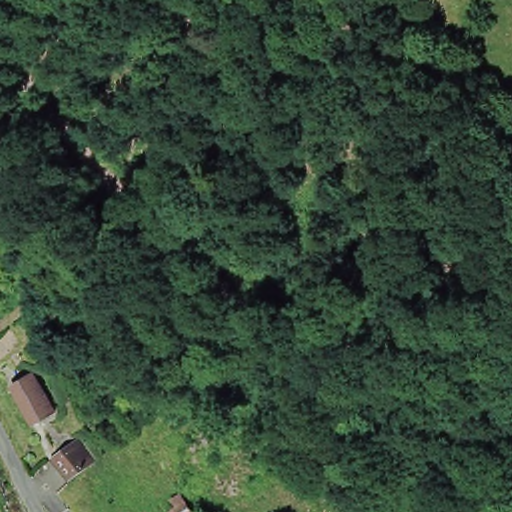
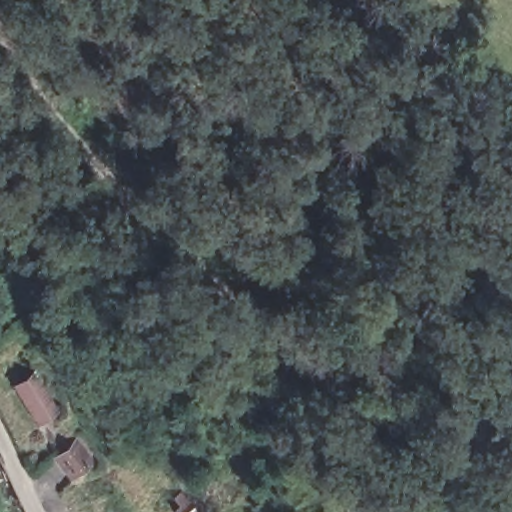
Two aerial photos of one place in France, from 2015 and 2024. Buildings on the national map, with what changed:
unchanged [(66,407),(38,421),(7,379),(38,360),(66,407)]
unchanged [(91,458),(69,475),(45,448),(69,433),(91,458)]

